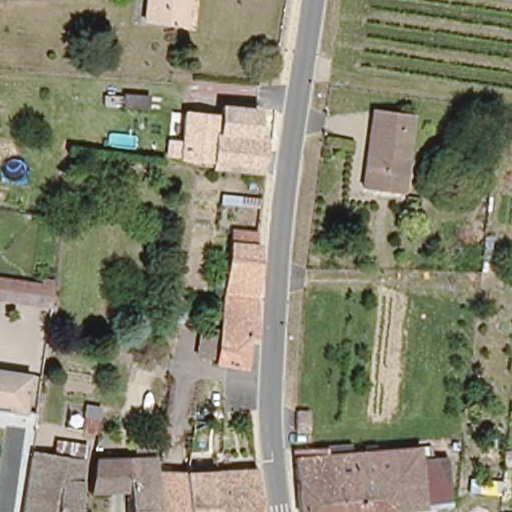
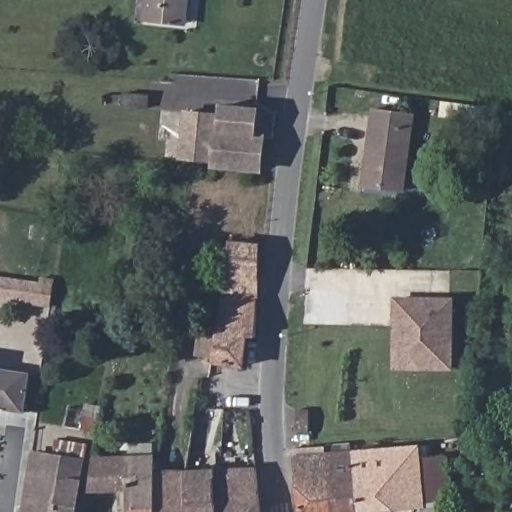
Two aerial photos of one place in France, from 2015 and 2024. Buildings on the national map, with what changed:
unchanged [(186,24),(146,20),(148,0),(188,0),(186,24)]
unchanged [(149,108),(122,107),(124,94),(150,95),(149,108)]
unchanged [(476,105),(496,107),(494,127),(475,125),(476,105)]
unchanged [(396,191),(362,186),(373,110),(413,116),(407,164),(403,192),(396,191)]
unchanged [(212,170),(212,165),(172,160),(173,151),(182,152),(186,117),(222,121),(222,112),(258,116),(256,141),(265,142),(262,175),(212,170)]
demolished [(112,140),(82,137),(84,119),(114,121),(112,140)]
unchanged [(202,331),(218,332),(228,236),(243,237),(257,239),(256,250),(258,250),(256,342),(251,342),(245,372),(215,365),(215,358),(200,358),(202,331)]
unchanged [(41,285),(42,277),(54,280),(51,305),(0,298),(0,279),(41,285)]
new [(393,370),(393,297),(455,297),(455,371),(393,370)]
unchanged [(188,324),(177,322),(179,311),(189,312),(188,324)]
unchanged [(31,371),(25,411),(0,408),(0,368),(31,371)]
unchanged [(308,433),(297,432),(297,411),(309,411),(308,433)]
unchanged [(99,430),(83,428),(85,416),(101,418),(99,430)]
unchanged [(85,444),(75,512),(24,512),(32,453),(52,457),(56,439),(85,444)]
unchanged [(457,440),(463,441),(463,448),(457,448),(457,440)]
unchanged [(335,446),(352,445),(352,452),(357,452),(421,447),(436,446),(437,457),(446,456),(452,456),(456,503),(454,504),(441,505),(426,506),(362,512),(304,512),(303,503),(299,448),(317,448),(329,447),(335,446)]
unchanged [(155,457),(156,470),(157,512),(129,512),(128,488),(91,490),(96,453),(102,453),(102,460),(155,457)]
unchanged [(190,512),(157,512),(156,470),(187,471),(187,472),(190,512)]
unchanged [(258,470),(262,512),(190,512),(187,472),(258,470)]

